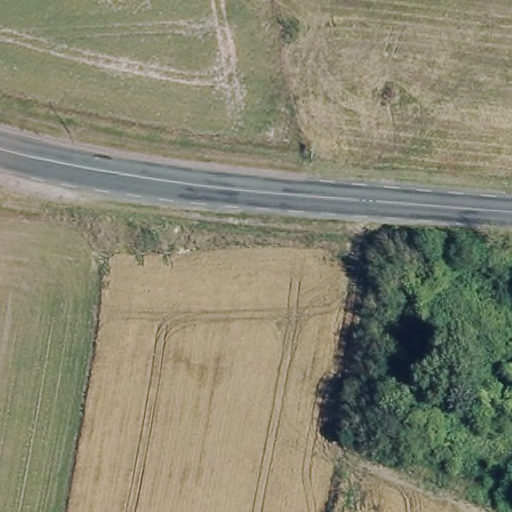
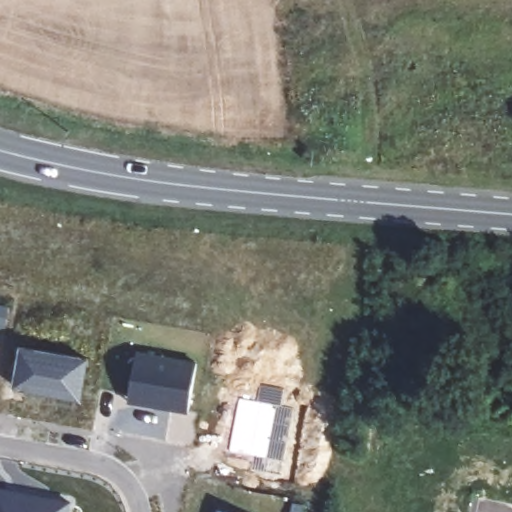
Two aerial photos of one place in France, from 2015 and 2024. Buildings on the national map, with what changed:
new [(22,347),(88,360),(80,398),(15,386),(22,347)]
new [(137,353),(197,364),(188,412),(154,406),(128,401),(129,395),(137,353)]
new [(280,405),(294,407),(280,475),(253,469),(256,456),(229,450),(239,396),(256,400),(259,384),(283,389),(280,405)]
new [(70,512),(0,512),(0,488),(72,501),(70,512)]
new [(221,512),(216,512),(217,511),(221,512)]

